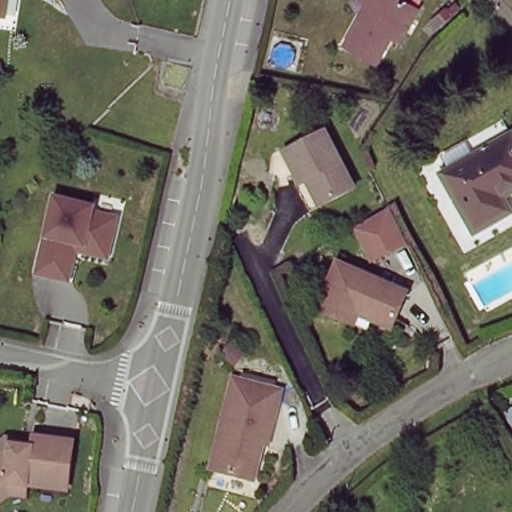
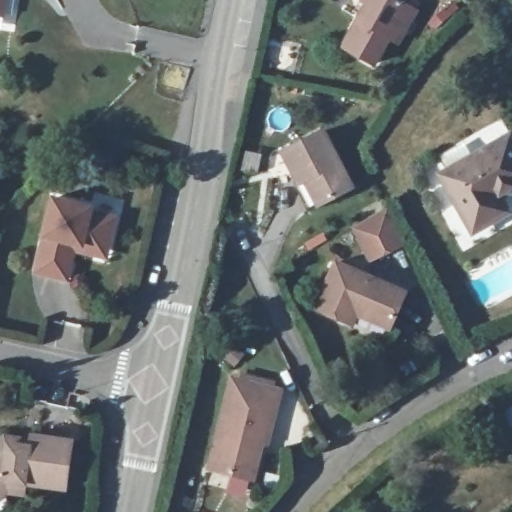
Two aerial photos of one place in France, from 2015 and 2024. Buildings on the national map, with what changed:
unchanged [(395,5),(404,10),(387,42),(378,37),(363,64),(333,47),(347,22),(352,25),(360,9),(355,7),(359,0),(398,0),(395,5)]
unchanged [(295,182),(301,180),(284,149),(323,129),(352,182),(319,200),(308,206),(295,182)]
unchanged [(499,218),(472,231),(442,172),(512,137),(512,191),(491,202),(499,218)]
unchanged [(362,242),(353,224),(385,201),(404,238),(378,252),(369,256),(362,242)]
unchanged [(76,253),(70,284),(39,278),(55,203),(93,212),(92,216),(116,221),(110,254),(109,260),(76,253)]
unchanged [(359,312),(354,323),(319,309),(338,263),(406,291),(396,316),(392,325),(359,312)]
unchanged [(237,474),(211,468),(233,377),(281,389),(273,421),(268,443),(263,442),(258,460),(256,470),(254,478),(237,474)]
unchanged [(13,490),(0,499),(0,444),(11,435),(28,438),(36,439),(36,434),(77,439),(72,487),(30,481),(29,492),(13,490)]

